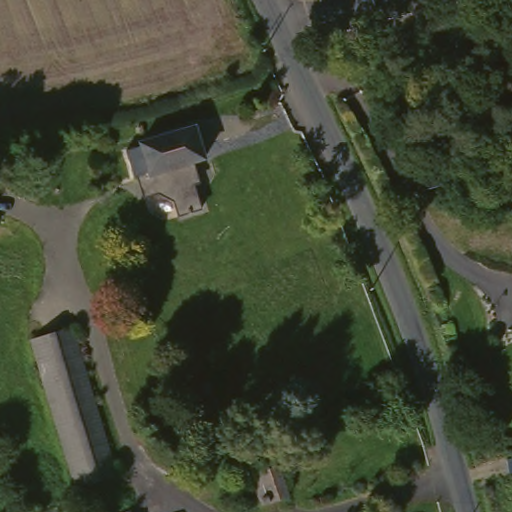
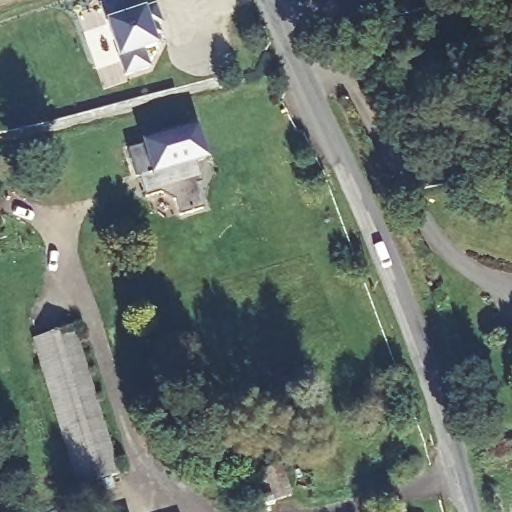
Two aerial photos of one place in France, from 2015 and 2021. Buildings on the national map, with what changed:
new [(118,0),(123,14),(153,4),(160,24),(155,26),(157,35),(151,35),(155,49),(141,54),(146,70),(122,79),(116,61),(103,23),(97,6),(112,0),(118,0)]
unchanged [(209,154),(198,158),(203,173),(197,174),(207,204),(184,212),(179,197),(165,189),(150,193),(143,173),(140,174),(132,147),(148,143),(147,139),(200,123),(209,154)]
unchanged [(408,181),(403,158),(433,150),(440,173),(408,181)]
unchanged [(79,485),(35,338),(72,327),(116,475),(79,485)]
unchanged [(265,503),(259,483),(264,481),(260,467),(279,461),(289,496),(265,503)]
unchanged [(413,500),(417,512),(375,512),(413,500)]
unchanged [(57,508),(60,512),(49,512),(57,508)]

